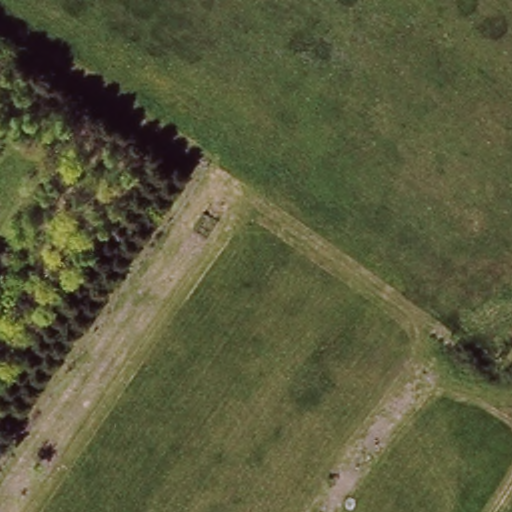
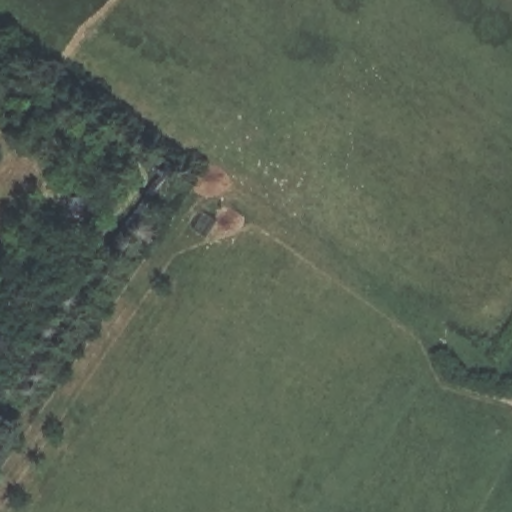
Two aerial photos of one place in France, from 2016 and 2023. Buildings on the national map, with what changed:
[]

